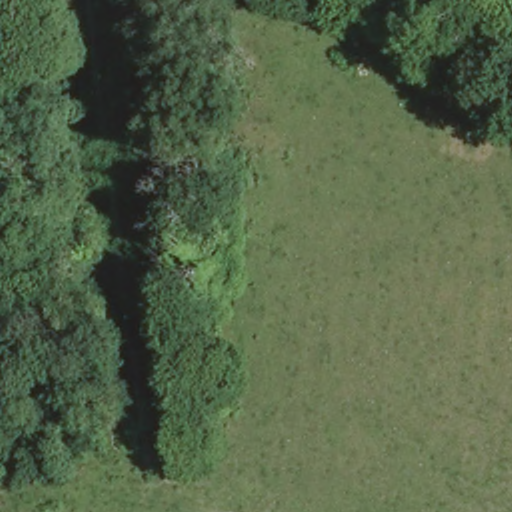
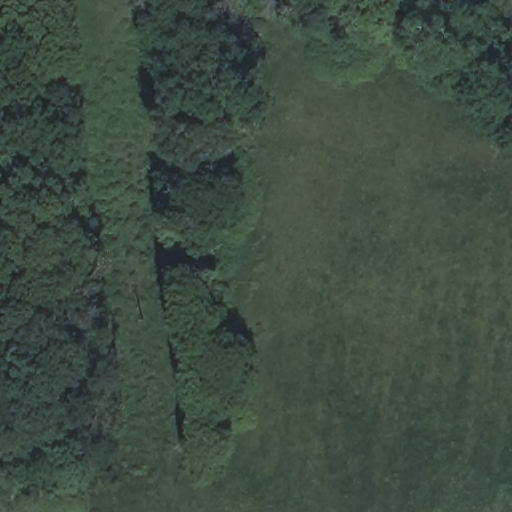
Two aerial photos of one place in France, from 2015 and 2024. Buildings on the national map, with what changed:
[]

